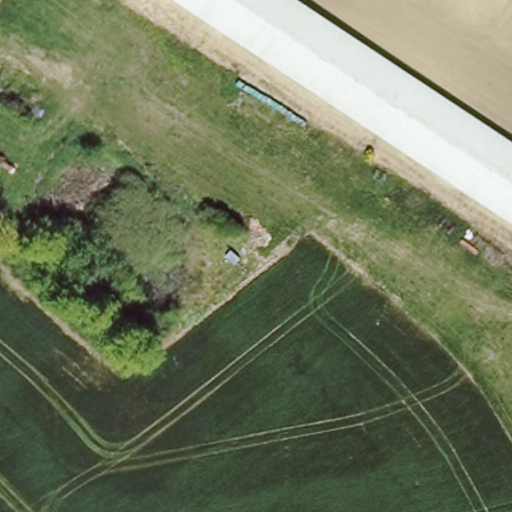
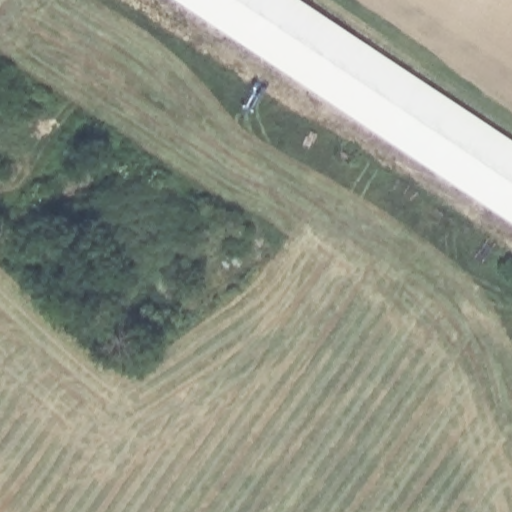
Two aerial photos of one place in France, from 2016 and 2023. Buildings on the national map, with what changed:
unchanged [(512,153),(512,225),(172,0),(282,0),(512,153)]

